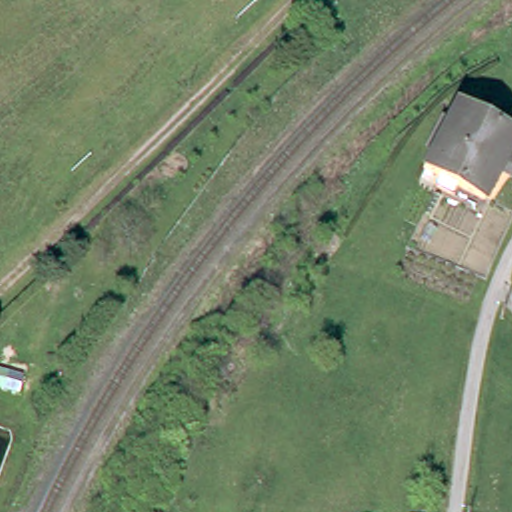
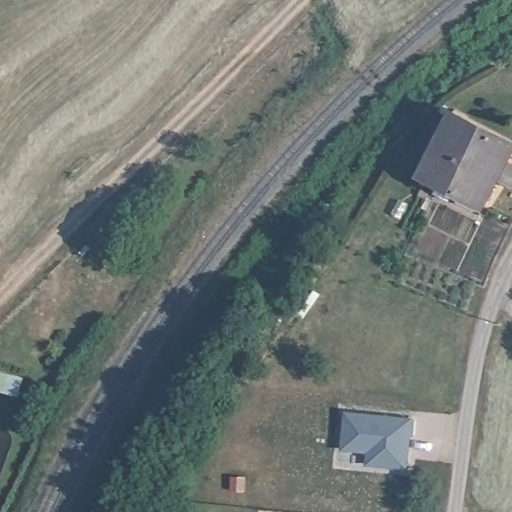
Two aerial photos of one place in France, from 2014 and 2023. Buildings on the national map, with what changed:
unchanged [(485,199),(455,184),(450,192),(435,184),(433,184),(438,175),(421,167),(455,102),(512,132),(512,145),(508,153),(512,155),(512,176),(500,169),(485,199)]
new [(415,419),(410,471),(366,465),(368,452),(341,450),(345,412),(415,419)]

